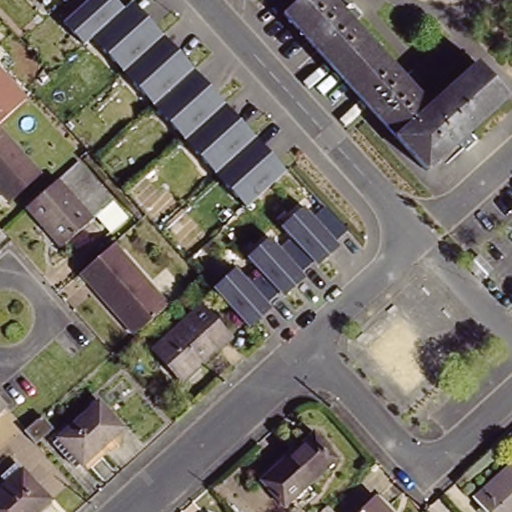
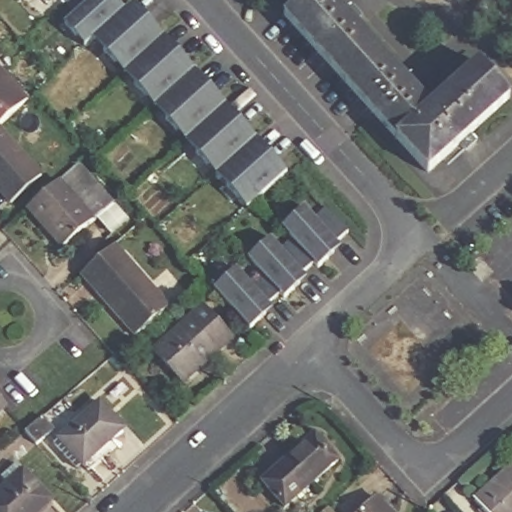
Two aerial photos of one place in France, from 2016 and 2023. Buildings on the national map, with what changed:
unchanged [(42,0),(50,0),(44,3),(42,0)]
unchanged [(131,6),(284,172),(245,209),(93,41),(84,46),(63,29),(76,16),(58,0),(110,0),(120,12),(131,6)]
unchanged [(279,13),(294,0),(329,0),(417,97),(416,98),(425,109),(474,64),(506,98),(424,171),(279,13)]
unchanged [(0,125),(0,71),(26,100),(0,125)]
unchanged [(10,202),(0,190),(0,131),(40,175),(10,202)]
unchanged [(59,179),(78,163),(112,200),(128,218),(109,234),(95,216),(92,220),(61,247),(24,209),(59,179)]
unchanged [(344,231),(329,246),(337,250),(318,271),(309,262),(296,275),(304,282),(285,303),(274,292),(262,306),(269,314),(248,332),(213,290),(234,270),(243,280),(254,271),(244,260),(266,241),(278,250),(287,240),(281,230),(299,212),(313,222),(326,211),(344,231)]
unchanged [(140,330),(86,270),(120,239),(174,300),(140,330)]
unchanged [(200,301),(236,339),(183,386),(149,348),(200,301)]
unchanged [(0,408),(0,395),(6,402),(0,408)]
unchanged [(128,424),(107,443),(111,448),(93,465),(64,435),(105,397),(128,424)]
unchanged [(31,430),(47,415),(58,428),(43,442),(31,430)]
unchanged [(343,452),(292,499),(269,473),(319,427),(343,452)]
unchanged [(479,495),(512,465),(512,512),(494,512),(479,495)]
unchanged [(45,512),(0,512),(0,499),(29,472),(56,501),(45,512)]
unchanged [(405,512),(360,512),(384,490),(405,512)]
unchanged [(339,500),(349,512),(330,512),(328,510),(339,500)]

